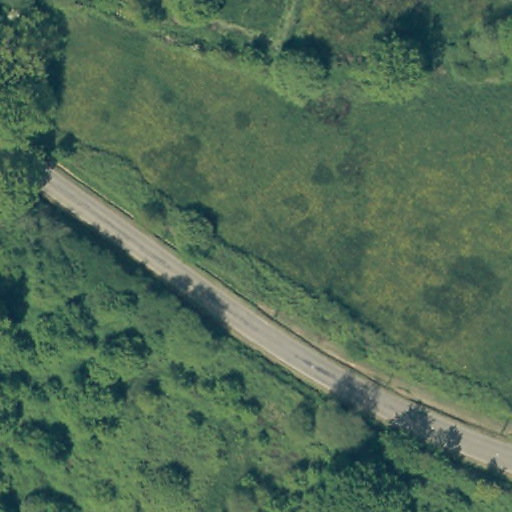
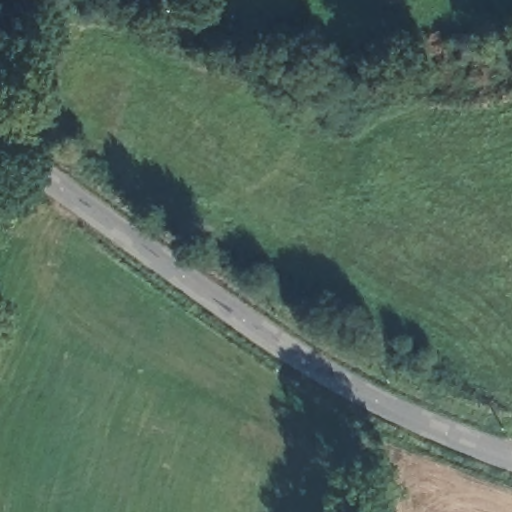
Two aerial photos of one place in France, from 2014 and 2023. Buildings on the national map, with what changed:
unchanged [(12,217),(9,222),(0,217),(0,186),(23,201),(12,217)]

